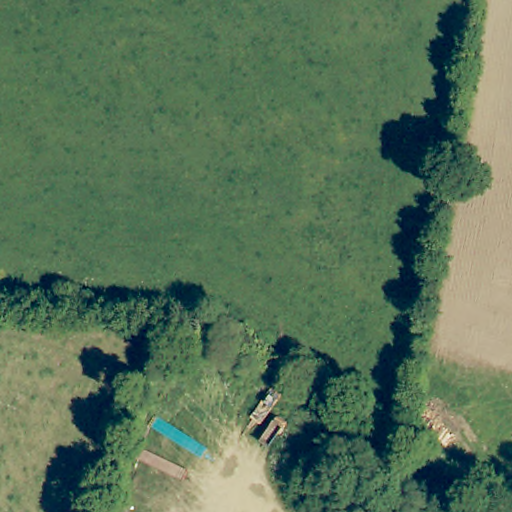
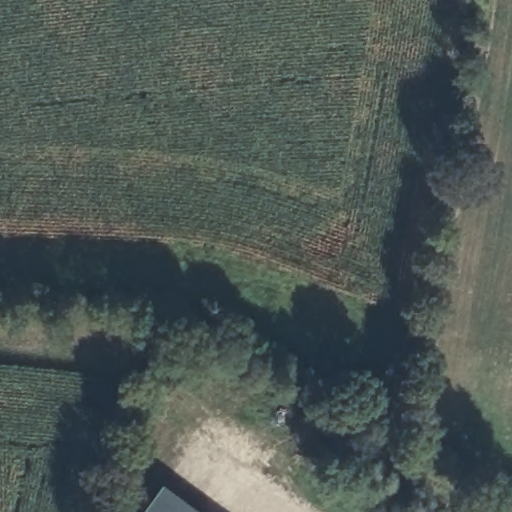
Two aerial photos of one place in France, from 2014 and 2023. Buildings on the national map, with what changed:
new [(201,512),(144,512),(165,485),(201,512)]

